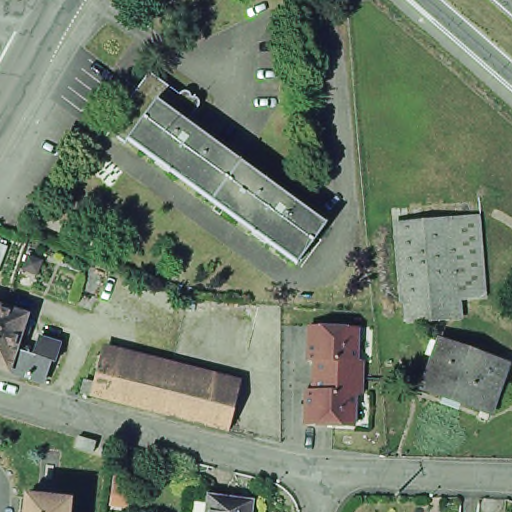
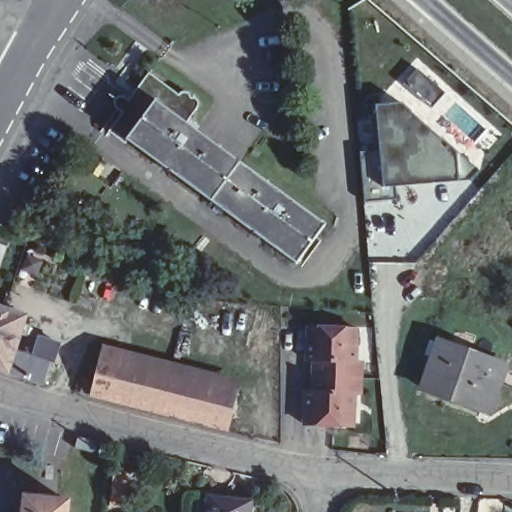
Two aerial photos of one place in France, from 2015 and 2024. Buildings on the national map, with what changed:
unchanged [(290,278),(122,154),(119,157),(102,145),(116,126),(109,120),(108,118),(108,116),(109,114),(110,112),(112,110),(115,110),(117,110),(124,115),(132,105),(145,86),(173,107),(176,105),(179,105),(180,105),(182,106),(184,110),(182,114),(186,112),(187,111),(190,112),(192,112),(193,115),(193,116),(193,119),(181,136),(319,237),(290,278)]
new [(402,102),(479,172),(471,180),(395,187),(396,200),(364,201),(359,153),(377,150),(374,105),(402,102)]
demolished [(448,220),(475,218),(482,293),(456,295),(448,220)]
demolished [(402,300),(395,224),(448,220),(456,295),(402,300)]
unchanged [(0,246),(5,247),(0,261),(0,246)]
unchanged [(7,368),(0,366),(0,304),(5,305),(26,311),(23,320),(30,321),(30,322),(27,330),(20,328),(15,345),(19,346),(33,351),(39,332),(59,338),(52,358),(48,357),(46,362),(42,378),(7,368)]
unchanged [(359,360),(365,360),(364,398),(357,398),(356,428),(301,427),(302,388),(311,388),(311,361),(304,362),(305,327),(359,328),(359,360)]
unchanged [(508,365),(492,412),(424,388),(435,357),(426,354),(432,338),(440,341),(441,340),(508,365)]
unchanged [(83,376),(92,378),(100,350),(170,367),(160,409),(89,391),(80,388),(83,376)]
unchanged [(170,367),(232,385),(237,386),(227,427),(160,409),(170,367)]
unchanged [(207,488),(248,492),(246,512),(204,512),(207,488)]
unchanged [(23,511),(17,511),(19,496),(25,496),(25,493),(67,497),(66,512),(23,512),(23,511)]

